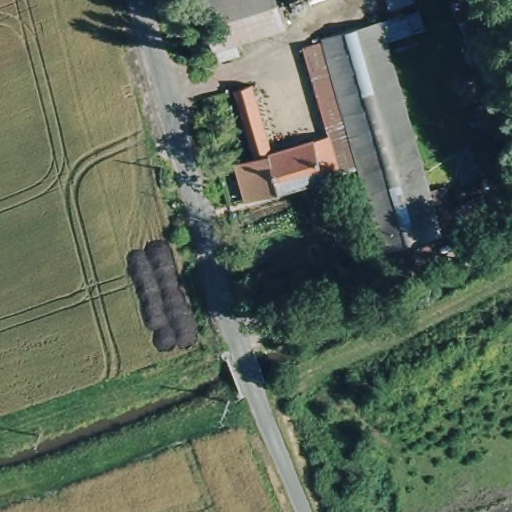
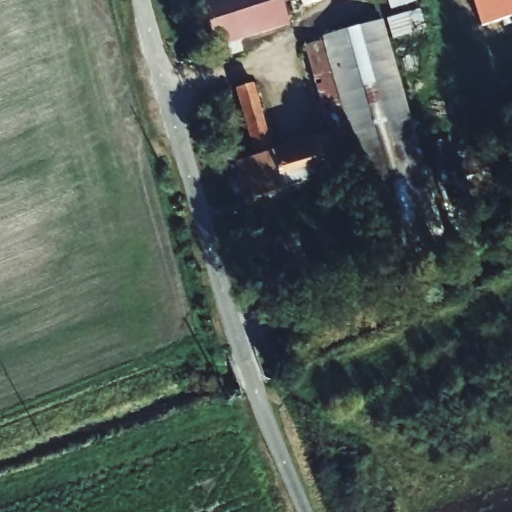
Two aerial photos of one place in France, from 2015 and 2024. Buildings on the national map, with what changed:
unchanged [(288,25),(216,48),(200,0),(280,0),(288,25)]
unchanged [(414,2),(387,12),(383,0),(413,0),(414,2)]
new [(480,28),(471,0),(512,0),(512,17),(480,28)]
unchanged [(417,12),(424,35),(383,46),(377,23),(417,12)]
unchanged [(320,40),(377,23),(383,46),(439,237),(381,254),(320,40)]
unchanged [(314,45),(351,173),(252,204),(239,167),(253,162),(232,94),(254,89),(271,153),(326,137),(301,49),(314,45)]

